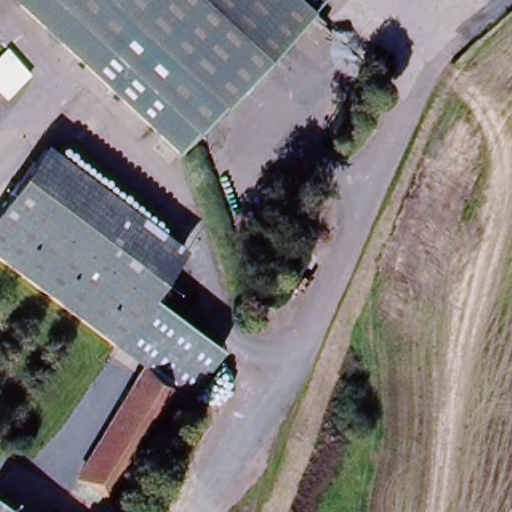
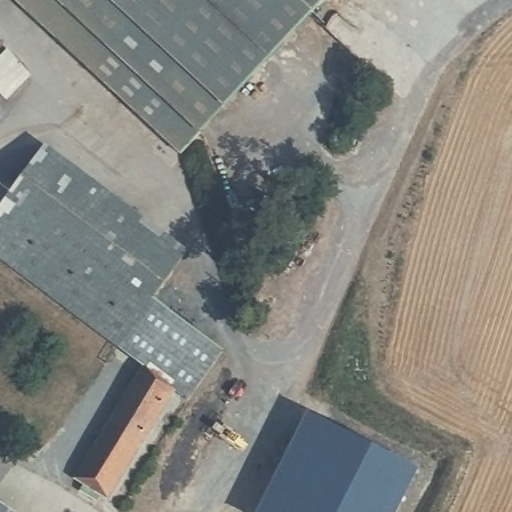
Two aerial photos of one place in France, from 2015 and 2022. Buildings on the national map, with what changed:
unchanged [(331,0),(178,156),(13,0),(331,0)]
unchanged [(38,165),(49,152),(189,260),(177,275),(38,165)]
unchanged [(115,350),(0,261),(0,209),(38,165),(177,275),(154,303),(115,350)]
unchanged [(154,303),(227,355),(191,397),(115,350),(154,303)]
unchanged [(76,480),(143,370),(177,390),(109,500),(76,480)]
new [(305,410),(414,462),(391,512),(256,512),(305,410)]
unchanged [(0,503),(13,512),(0,512),(0,503)]

